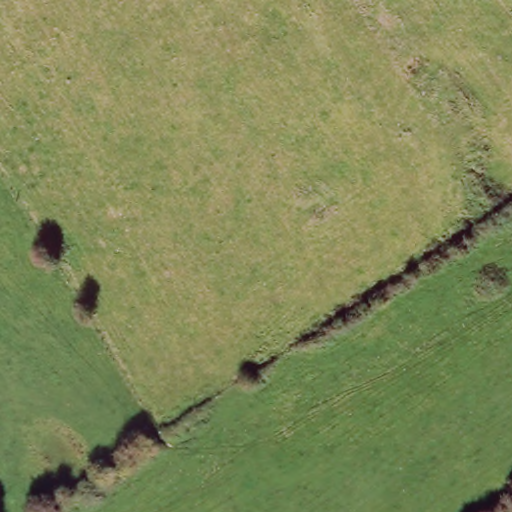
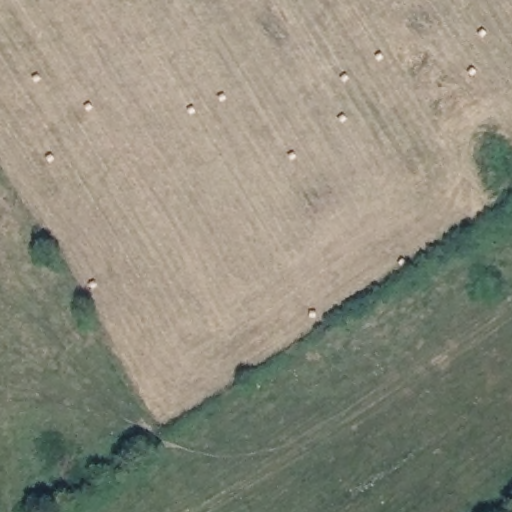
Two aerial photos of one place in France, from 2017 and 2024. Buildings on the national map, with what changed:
[]

